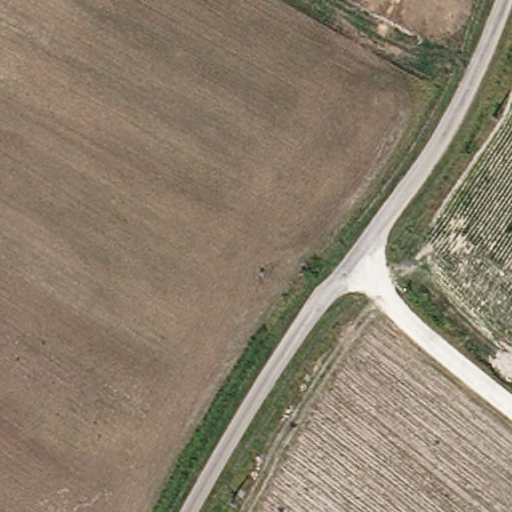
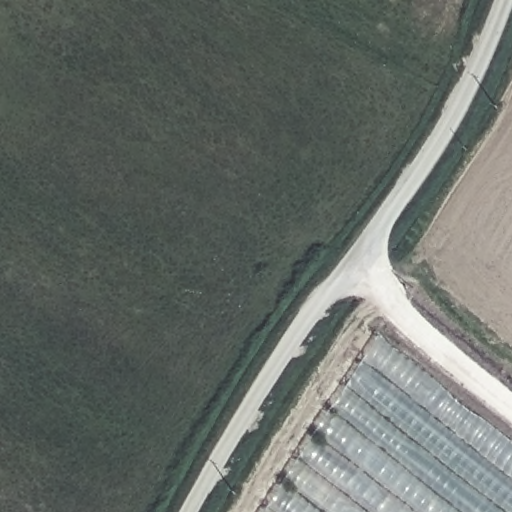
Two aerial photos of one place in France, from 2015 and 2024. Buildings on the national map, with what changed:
new [(512,437),(512,512),(261,512),(376,330),(512,437)]

